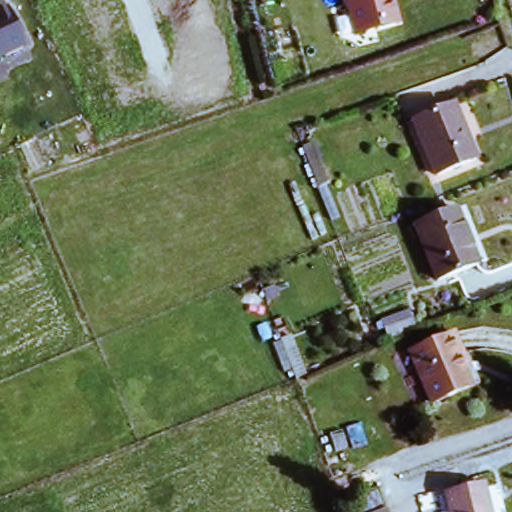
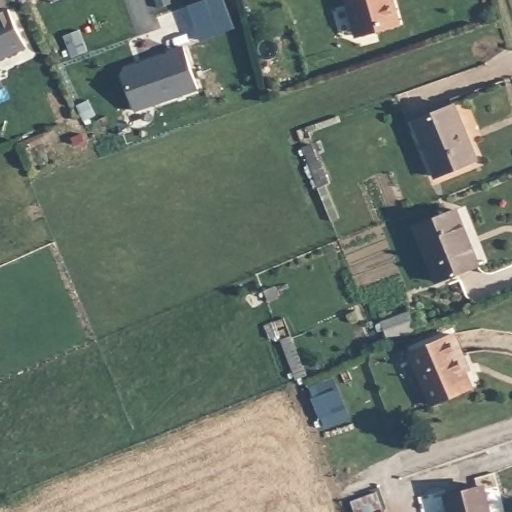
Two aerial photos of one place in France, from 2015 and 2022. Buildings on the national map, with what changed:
new [(207,0),(225,0),(235,30),(201,42),(188,6),(207,0)]
unchanged [(401,27),(378,32),(379,43),(361,49),(359,37),(355,38),(346,0),(394,0),(401,27)]
unchanged [(7,5),(25,49),(0,60),(0,7),(7,5)]
new [(116,66),(165,49),(164,46),(180,40),(197,86),(127,111),(113,72),(116,66)]
unchanged [(415,122),(455,104),(477,160),(437,177),(415,122)]
unchanged [(477,268),(437,283),(415,226),(452,211),(477,268)]
unchanged [(451,353),(467,389),(432,403),(411,352),(449,336),(453,348),(451,353)]
unchanged [(480,491),(487,512),(449,512),(446,501),(480,491)]

